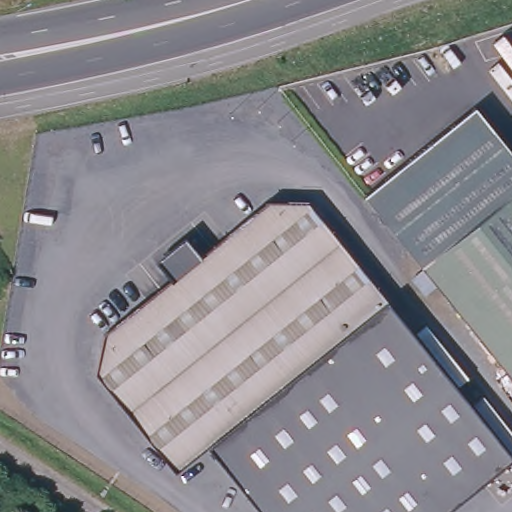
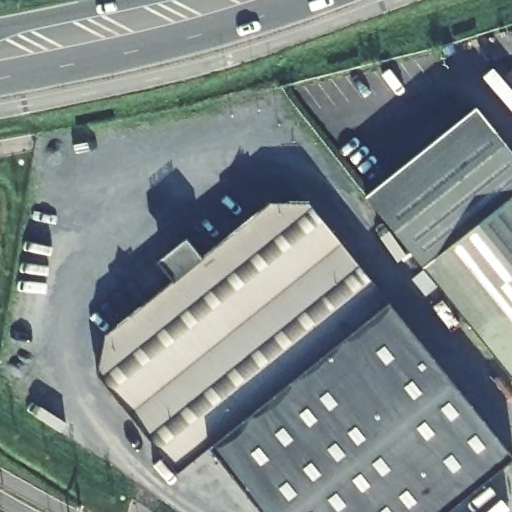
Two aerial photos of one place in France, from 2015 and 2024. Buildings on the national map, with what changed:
unchanged [(362,197),(470,111),(512,162),(512,378),(362,197)]
unchanged [(206,445),(173,472),(94,372),(102,333),(267,200),(310,209),(385,302),(206,445)]
unchanged [(512,467),(512,468),(455,512),(256,512),(206,445),(385,302),(512,467)]

